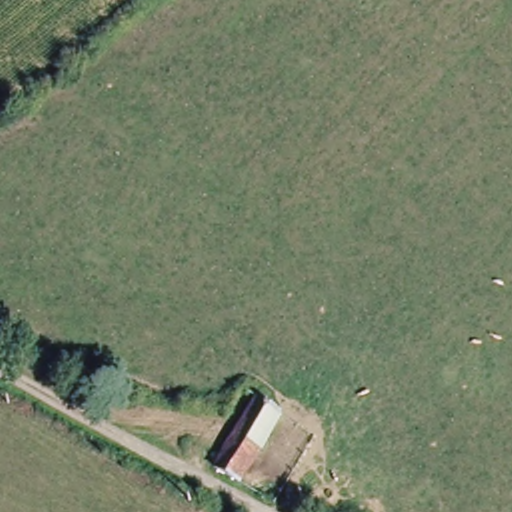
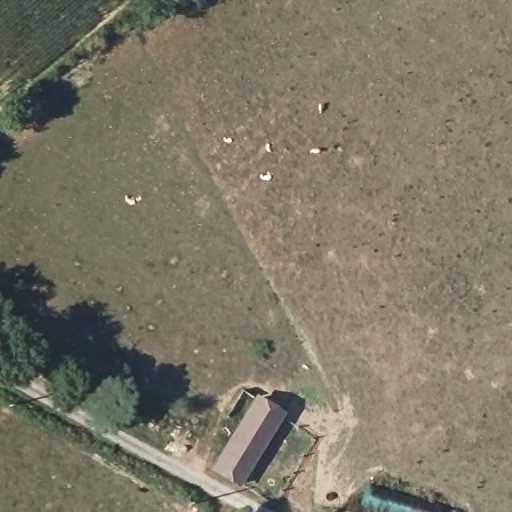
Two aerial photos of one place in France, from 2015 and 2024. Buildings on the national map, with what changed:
unchanged [(217,467),(241,425),(226,415),(240,388),(256,398),(282,414),(241,481),(217,467)]

